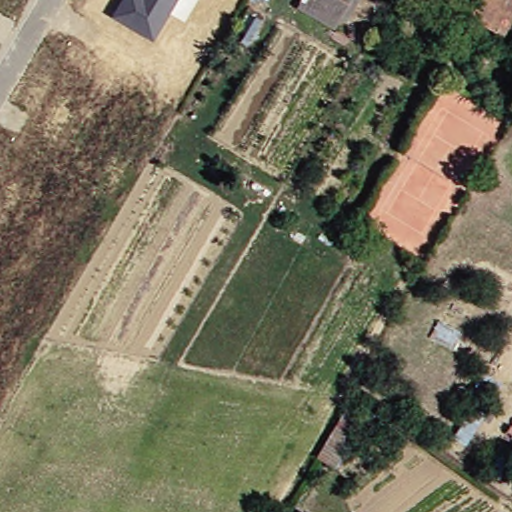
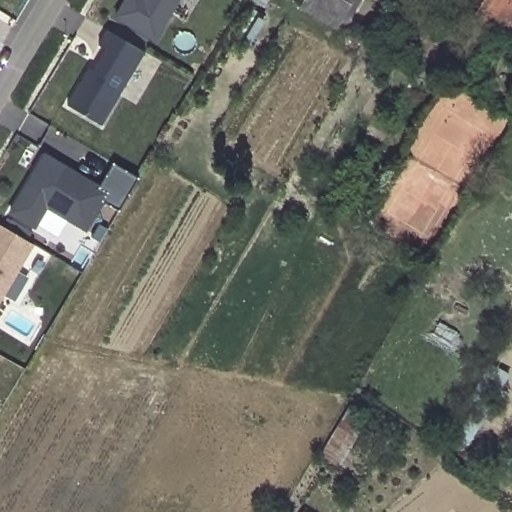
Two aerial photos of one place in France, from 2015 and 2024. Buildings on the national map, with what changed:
unchanged [(155,42),(112,18),(123,0),(179,0),(155,42)]
unchanged [(341,20),(316,7),(305,0),(353,0),(341,20)]
unchanged [(512,19),(502,35),(474,16),(485,0),(512,0),(512,19)]
new [(102,127),(66,106),(87,70),(92,73),(106,49),(99,46),(107,31),(145,52),(102,127)]
new [(120,212),(105,203),(87,233),(48,211),(36,230),(7,214),(43,153),(100,186),(114,164),(139,179),(120,212)]
new [(32,244),(0,299),(0,225),(32,244)]
unchanged [(367,419),(336,471),(317,458),(347,406),(367,419)]

